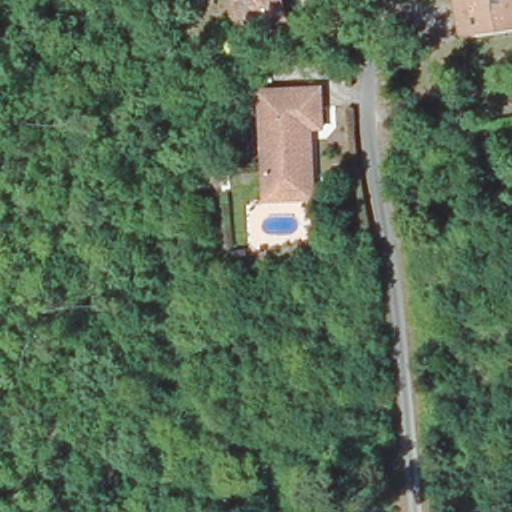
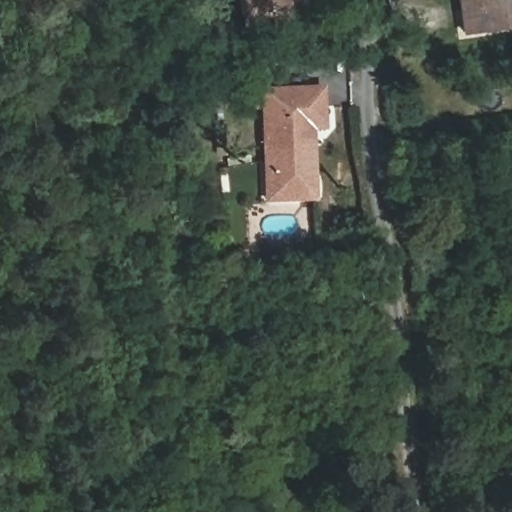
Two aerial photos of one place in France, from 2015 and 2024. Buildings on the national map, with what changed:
unchanged [(286,23),(242,33),(240,23),(235,0),(288,0),(293,22),(286,23)]
unchanged [(486,30),(465,34),(460,0),(512,0),(512,26),(486,30)]
unchanged [(258,114),(256,94),(265,93),(316,86),(321,123),(308,125),(310,146),(317,195),(298,198),(269,201),(264,164),(258,114)]

